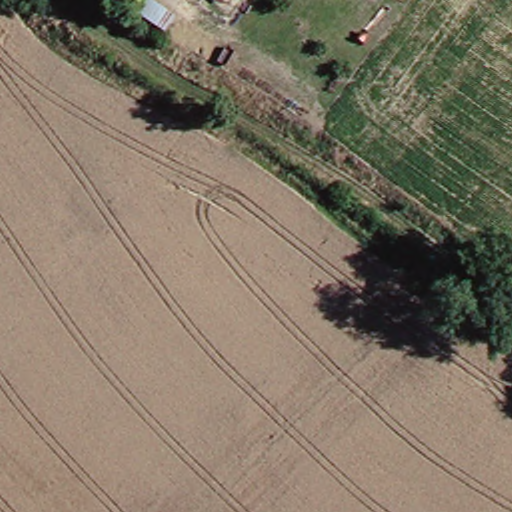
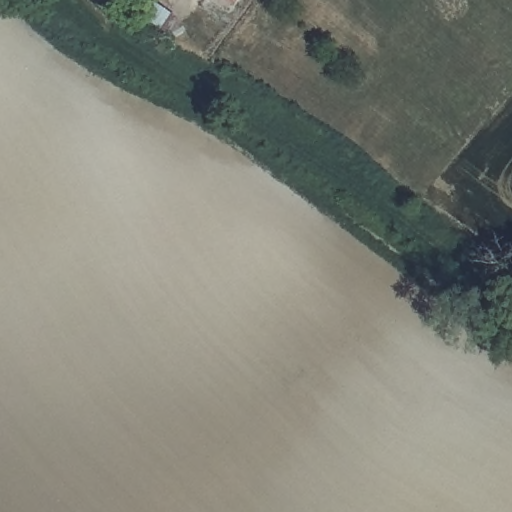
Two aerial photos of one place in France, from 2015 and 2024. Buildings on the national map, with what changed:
unchanged [(232,0),(243,0),(238,6),(232,0)]
unchanged [(147,24),(157,10),(183,30),(173,43),(147,24)]

